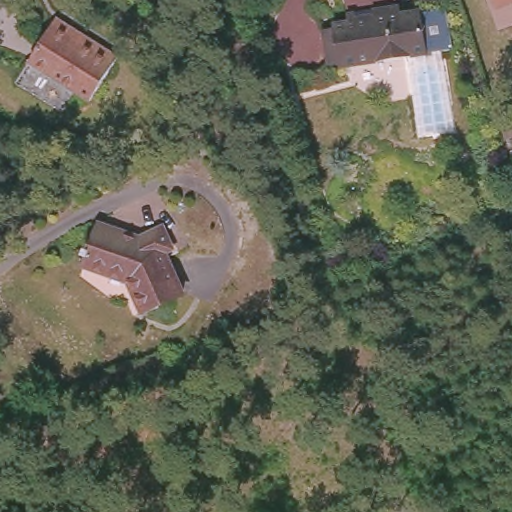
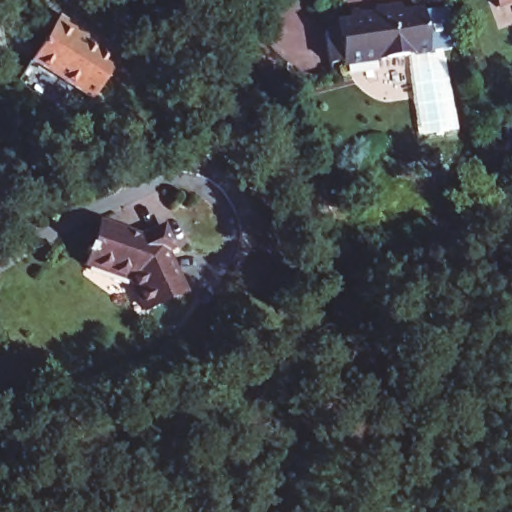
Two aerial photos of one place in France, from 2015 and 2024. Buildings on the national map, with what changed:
unchanged [(340,58),(333,59),(329,26),(337,24),(336,19),(351,17),(350,10),(359,9),(359,15),(375,13),(375,8),(403,6),(405,14),(423,11),(429,53),(341,63),(340,58)]
unchanged [(90,101),(26,60),(48,23),(53,14),(88,36),(117,55),(90,101)]
unchanged [(100,230),(137,245),(163,227),(175,245),(167,251),(192,287),(150,313),(133,288),(86,269),(100,230)]

